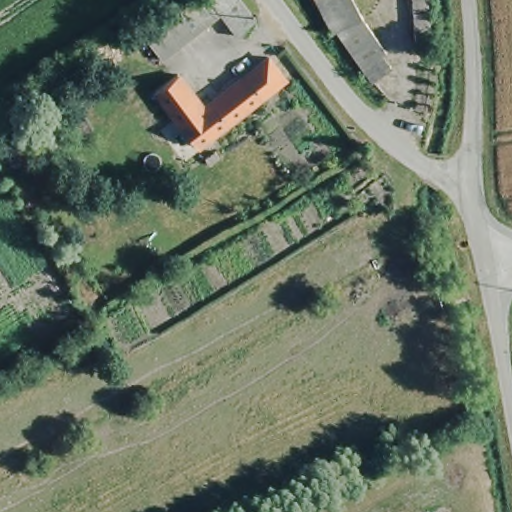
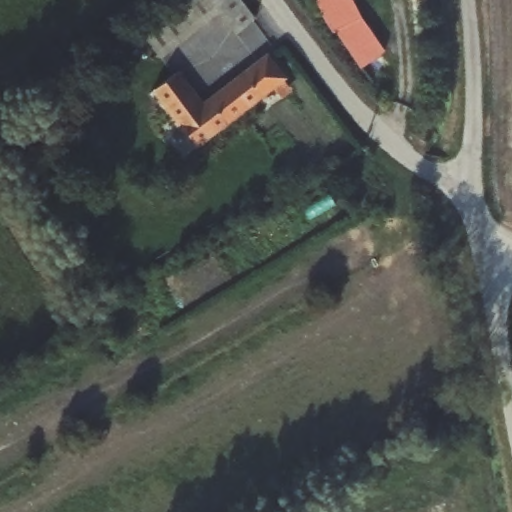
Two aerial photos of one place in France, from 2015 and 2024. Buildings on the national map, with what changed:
unchanged [(190,3),(194,0),(242,0),(264,27),(243,40),(222,13),(220,11),(205,23),(152,58),(138,39),(190,3)]
unchanged [(330,20),(327,22),(318,0),(338,0),(359,35),(367,31),(392,72),(380,81),(393,93),(389,100),(369,81),(330,20)]
unchanged [(417,54),(414,0),(428,0),(430,53),(417,54)]
unchanged [(150,93),(174,76),(200,110),(255,67),(262,73),(270,67),(282,80),(194,146),(150,93)]

